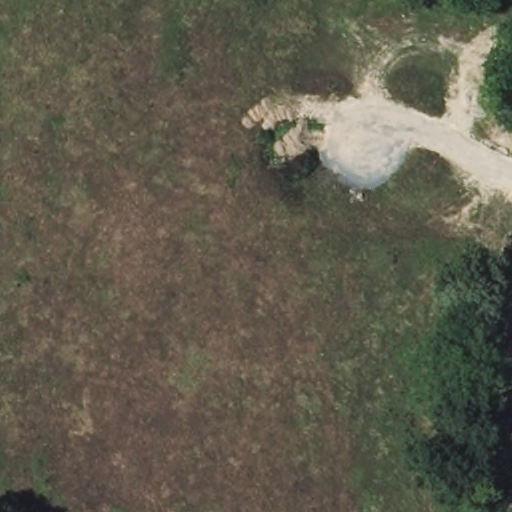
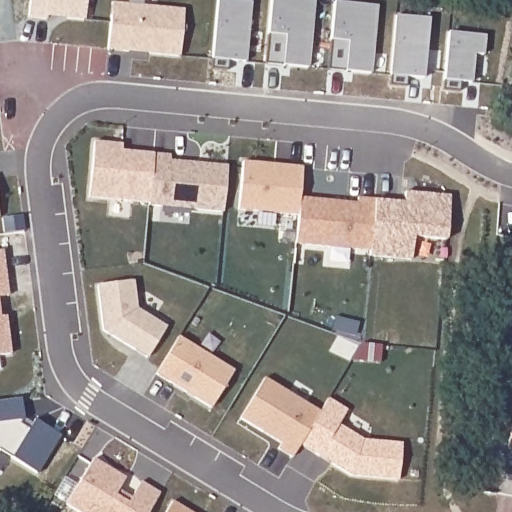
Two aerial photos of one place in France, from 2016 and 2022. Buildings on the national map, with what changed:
new [(112,3),(125,4),(184,10),(180,56),(149,53),(150,49),(129,48),(129,51),(108,50),(111,15),(112,3)]
new [(88,196),(93,141),(122,144),(121,151),(153,154),(149,202),(88,196)]
new [(153,154),(170,156),(170,161),(228,166),(223,212),(149,206),(153,154)]
new [(238,209),(242,161),(302,166),(300,198),(298,214),(238,209)]
new [(404,201),(404,191),(450,194),(448,240),(413,238),(411,261),(370,257),(370,251),(375,200),(404,201)]
new [(300,198),(357,204),(358,198),(375,200),(370,251),(296,244),(300,198)]
new [(6,275),(9,296),(0,297),(0,251),(3,251),(6,275)]
new [(103,329),(98,285),(134,280),(137,309),(166,326),(146,357),(103,329)]
new [(11,354),(0,355),(0,317),(6,317),(7,326),(11,354)]
new [(156,373),(178,338),(233,370),(211,407),(156,373)]
new [(293,457),(277,447),(281,442),(240,417),(265,378),(321,411),(300,445),(293,457)]
new [(0,449),(0,400),(21,398),(24,419),(31,424),(34,420),(60,434),(36,472),(0,449)]
new [(300,445),(328,399),(347,410),(338,425),(363,440),(402,444),(398,480),(351,476),(332,464),(319,456),(300,445)]
new [(507,449),(510,418),(512,418),(512,450),(507,449)]
new [(148,512),(80,512),(66,503),(94,458),(126,478),(119,488),(131,496),(141,481),(160,492),(148,512)]
new [(173,502),(190,512),(166,512),(173,502)]

